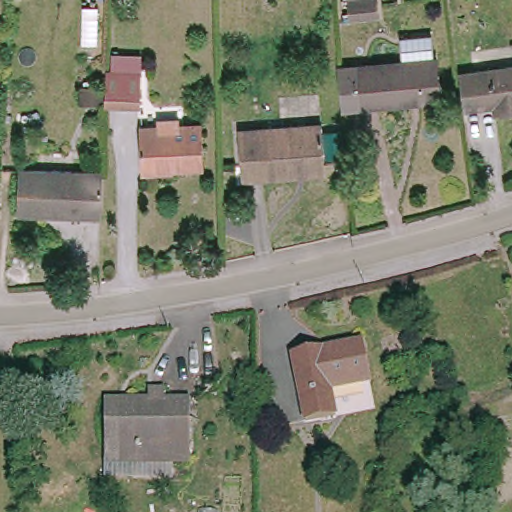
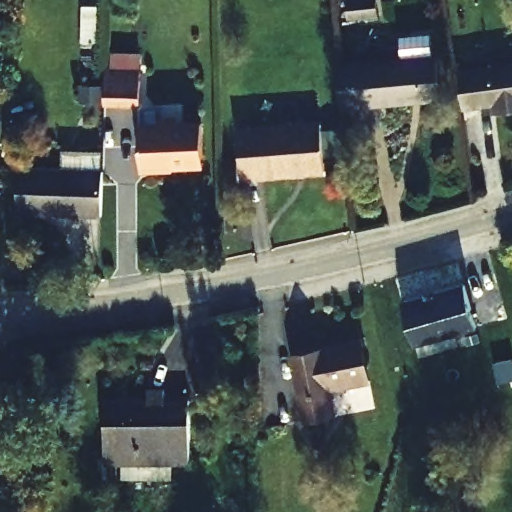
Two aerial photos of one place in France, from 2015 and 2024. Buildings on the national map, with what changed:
unchanged [(344,18),(343,0),(382,0),(383,16),(344,18)]
unchanged [(437,54),(440,94),(360,103),(358,63),(437,54)]
unchanged [(460,69),(512,61),(512,108),(496,110),(494,99),(465,103),(460,69)]
unchanged [(142,69),(140,101),(105,100),(105,69),(142,69)]
unchanged [(325,118),(329,169),(245,172),(242,121),(325,118)]
unchanged [(204,123),(205,166),(142,168),(144,125),(204,123)]
unchanged [(20,209),(22,164),(101,164),(101,209),(20,209)]
new [(427,301),(437,298),(437,297),(467,289),(477,332),(413,348),(403,304),(426,299),(427,301)]
unchanged [(292,354),(365,339),(372,379),(330,387),(335,416),(306,423),(292,354)]
unchanged [(149,400),(150,384),(170,385),(169,398),(192,399),(191,461),(105,457),(107,401),(149,400)]

